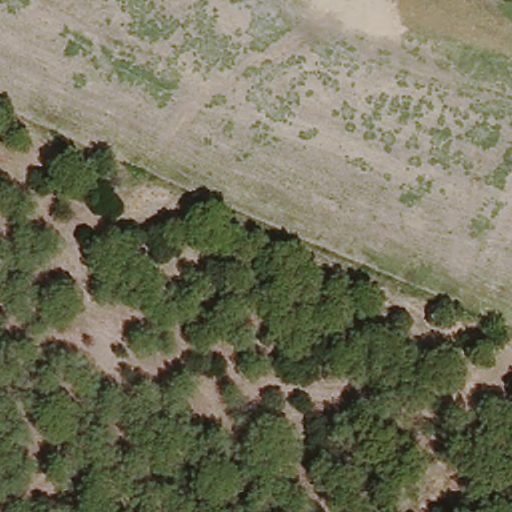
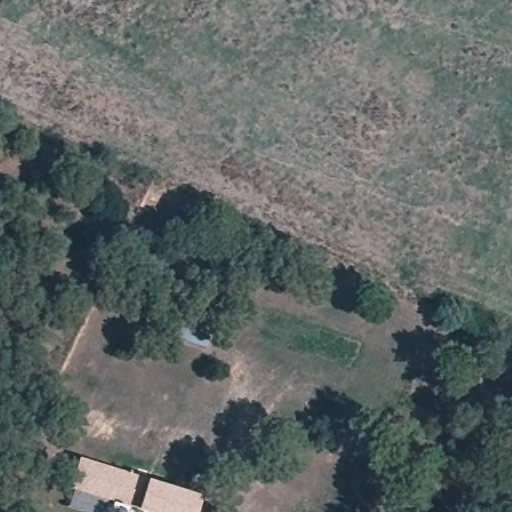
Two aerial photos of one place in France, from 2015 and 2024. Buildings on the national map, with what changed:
new [(80,457),(148,478),(201,496),(196,512),(147,512),(139,509),(70,487),(80,457)]

